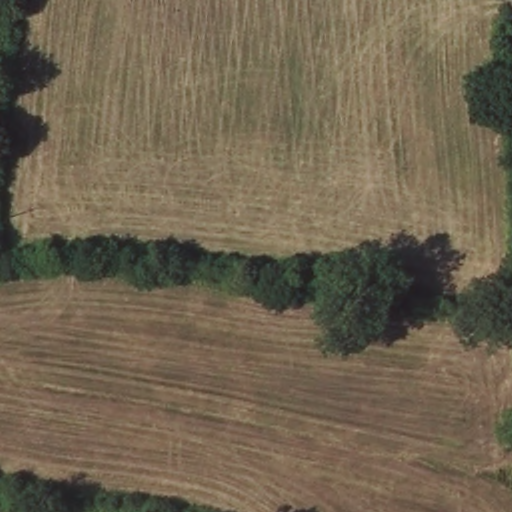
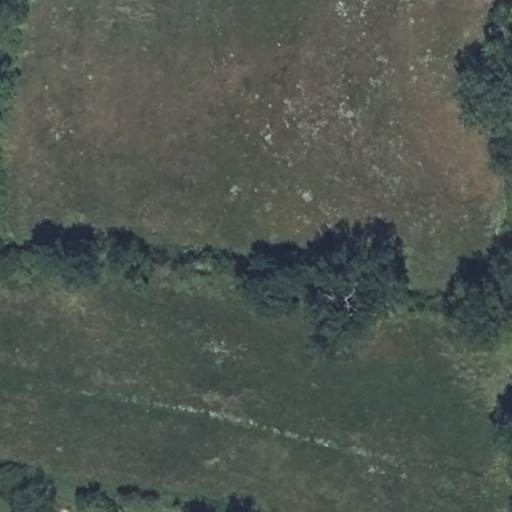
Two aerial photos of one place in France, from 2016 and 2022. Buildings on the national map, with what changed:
[]

